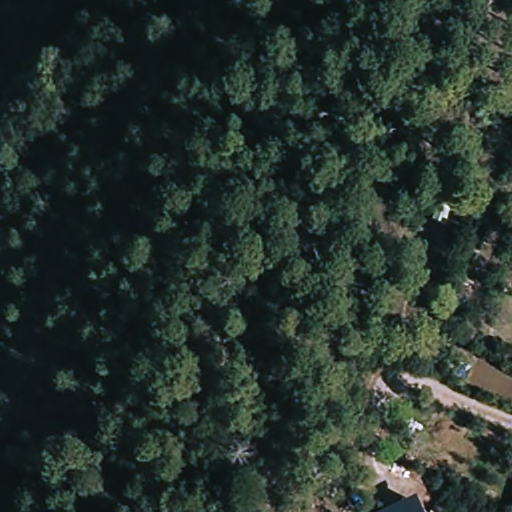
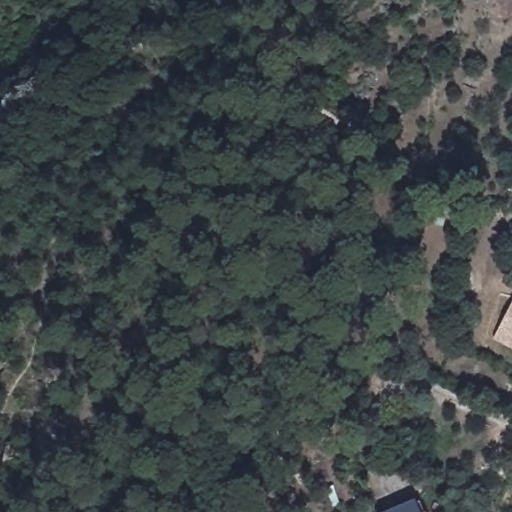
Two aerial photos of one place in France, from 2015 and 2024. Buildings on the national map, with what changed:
new [(512,302),(512,348),(493,338),(512,302)]
unchanged [(422,512),(385,512),(417,499),(422,512)]

